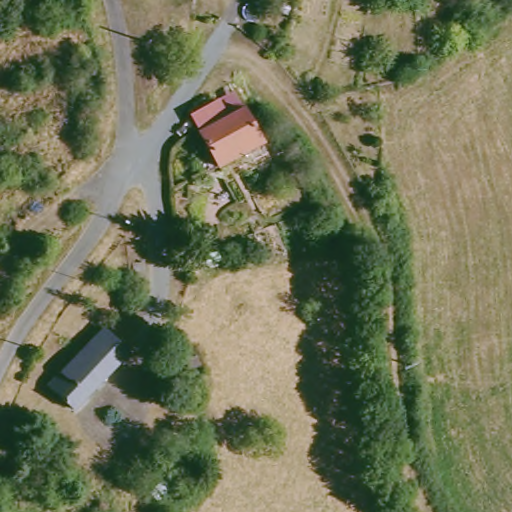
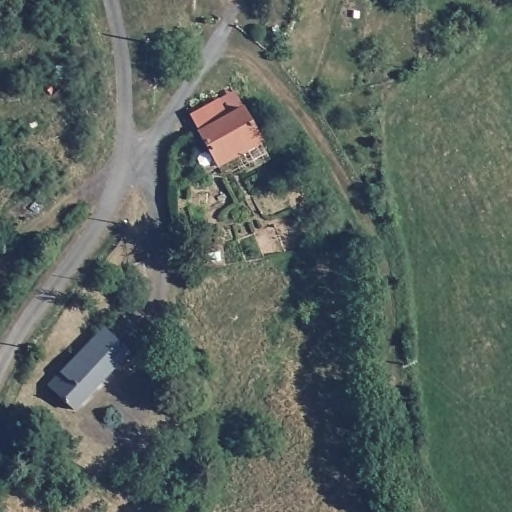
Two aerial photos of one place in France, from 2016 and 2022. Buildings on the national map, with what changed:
unchanged [(247,104),(265,138),(222,161),(205,127),(247,104)]
unchanged [(75,401),(56,381),(67,371),(62,368),(107,325),(129,349),(75,401)]

